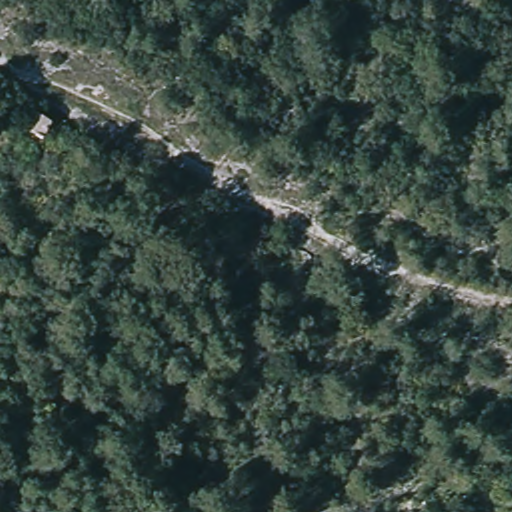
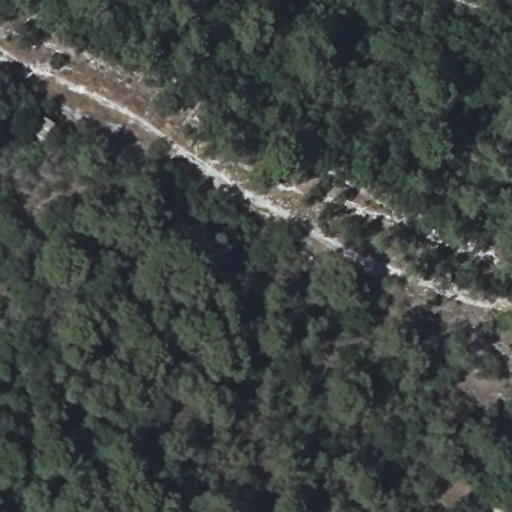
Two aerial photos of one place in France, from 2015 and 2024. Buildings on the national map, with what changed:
unchanged [(25,138),(35,120),(50,129),(42,146),(25,138)]

